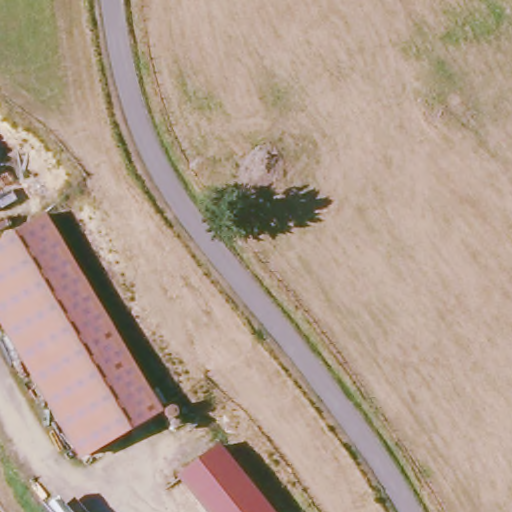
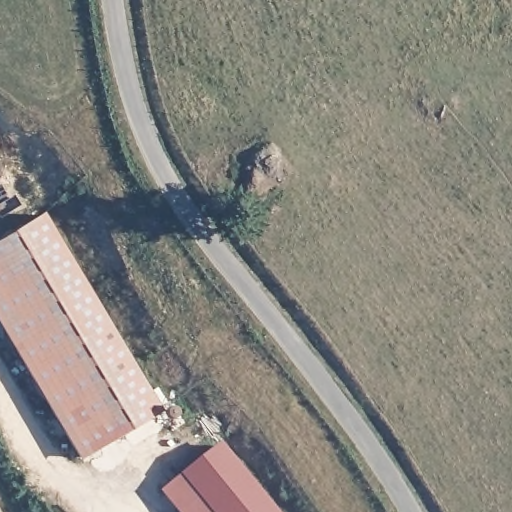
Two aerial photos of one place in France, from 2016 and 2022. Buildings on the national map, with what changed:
unchanged [(158,415),(78,463),(0,333),(0,248),(41,223),(158,415)]
unchanged [(209,512),(180,476),(223,444),(276,512),(209,512)]

